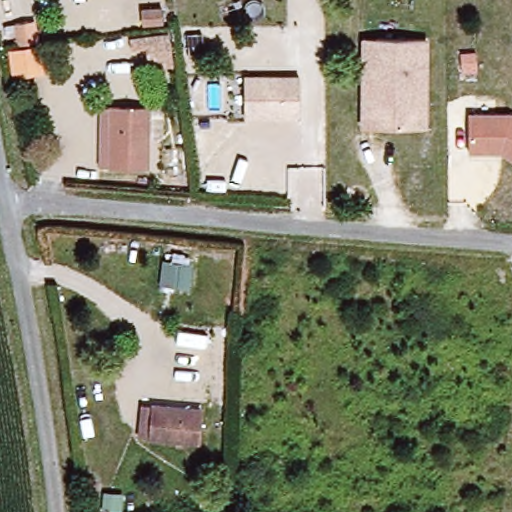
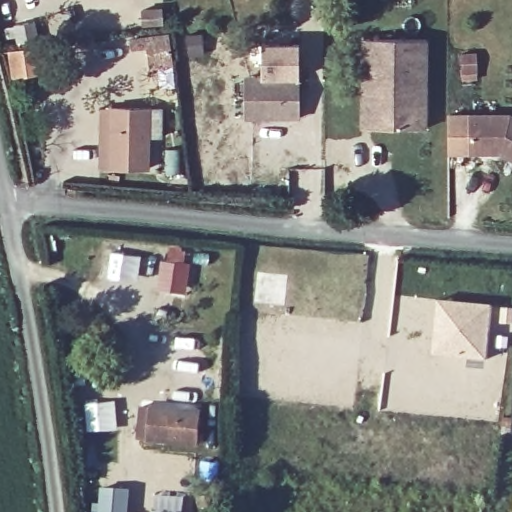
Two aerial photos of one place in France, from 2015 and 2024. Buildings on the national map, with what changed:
unchanged [(427,39),(428,128),(362,129),(362,39),(427,39)]
new [(261,73),(260,44),(298,43),(299,73),(261,73)]
unchanged [(299,73),(301,120),(245,120),(244,73),(299,73)]
unchanged [(141,111),(139,164),(102,165),(106,110),(141,111)]
unchanged [(511,115),(512,116),(512,165),(499,157),(470,157),(470,117),(511,115)]
new [(482,361),(444,358),(429,356),(434,303),(454,304),(487,307),(482,361)]
unchanged [(195,411),(192,444),(147,438),(154,405),(195,411)]

